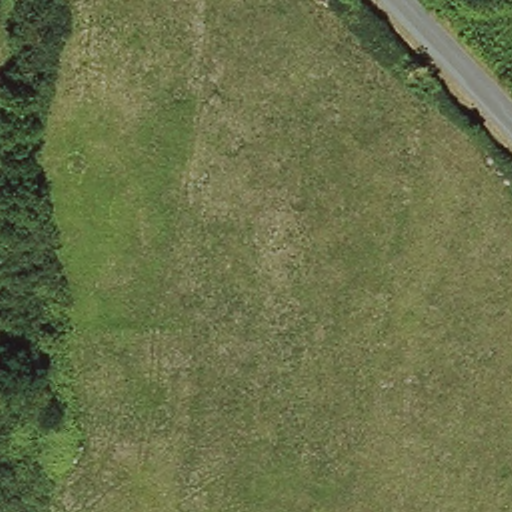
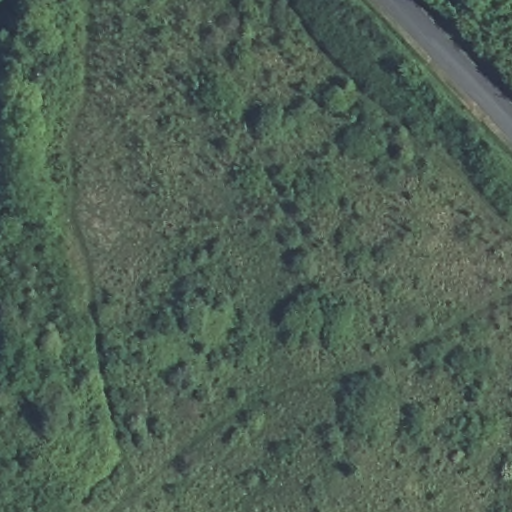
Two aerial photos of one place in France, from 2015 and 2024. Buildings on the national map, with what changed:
[]

